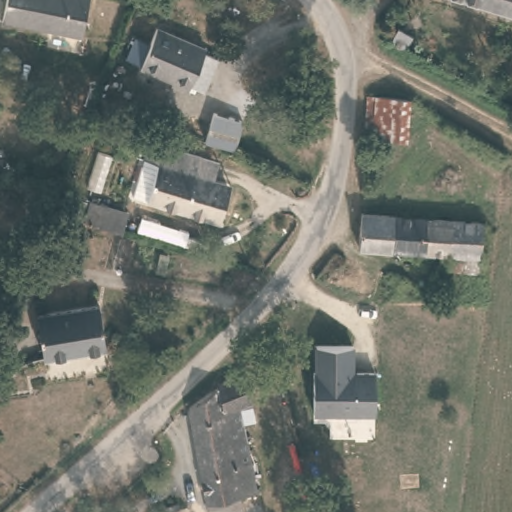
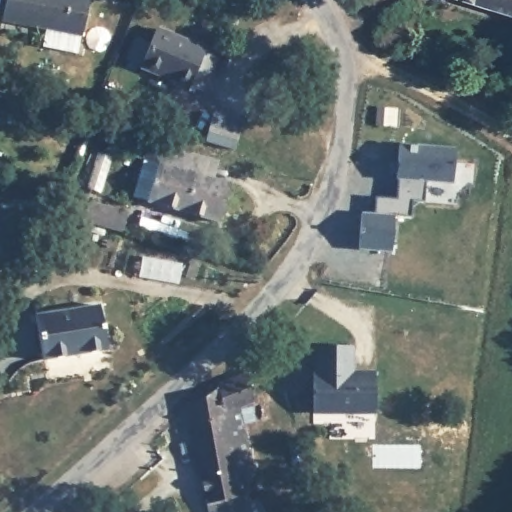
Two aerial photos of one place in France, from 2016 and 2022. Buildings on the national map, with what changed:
unchanged [(82,37),(2,21),(6,0),(89,0),(82,37)]
unchanged [(512,16),(464,0),(512,0),(512,16)]
unchanged [(392,42),(391,34),(399,27),(412,36),(403,49),(392,42)]
unchanged [(156,29),(206,49),(204,54),(218,60),(204,92),(190,87),(188,92),(172,85),(174,80),(140,67),(156,29)]
unchanged [(233,144),(218,140),(204,135),(213,105),(228,111),(242,116),(233,144)]
unchanged [(133,196),(150,141),(201,157),(218,162),(214,179),(230,185),(229,191),(220,222),(133,196)]
new [(451,185),(425,182),(424,203),(412,202),(411,219),(394,217),(392,252),(357,250),(360,212),(374,213),(375,197),(396,198),(398,180),(396,180),(399,145),(454,149),(451,185)]
unchanged [(84,222),(90,202),(128,214),(122,234),(84,222)]
demolished [(486,224),(481,273),(453,271),(453,255),(364,248),(365,215),(486,224)]
unchanged [(29,235),(17,262),(2,257),(13,230),(29,235)]
unchanged [(99,306),(106,350),(44,360),(37,315),(99,306)]
unchanged [(314,415),(312,345),(351,346),(351,371),(372,371),(374,415),(314,415)]
unchanged [(186,408),(203,393),(212,392),(220,383),(244,375),(251,406),(240,410),(254,495),(239,499),(242,512),(207,512),(205,502),(186,408)]

